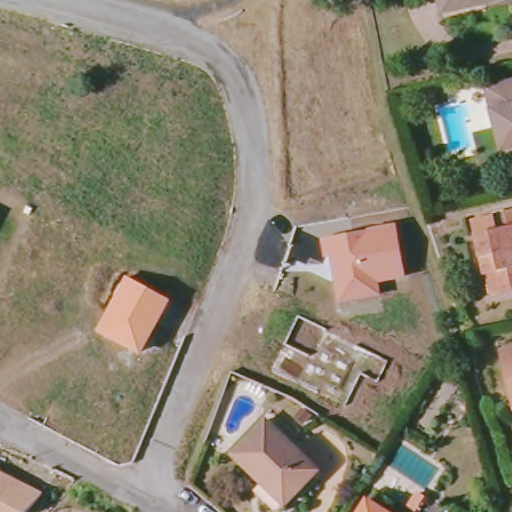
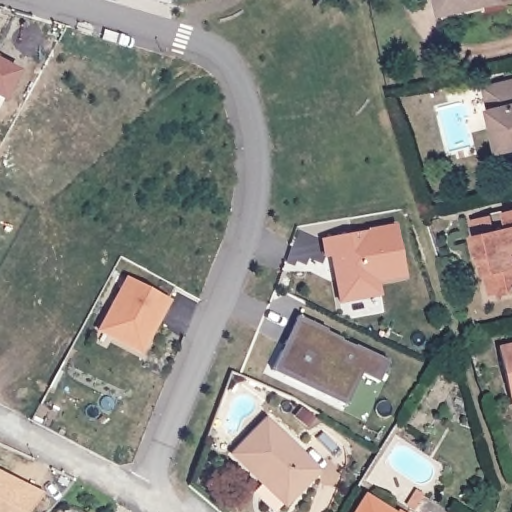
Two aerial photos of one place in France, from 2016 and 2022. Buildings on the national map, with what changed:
unchanged [(440,13),(436,0),(495,0),(440,13)]
new [(0,100),(0,60),(19,71),(2,101),(0,100)]
unchanged [(512,79),(512,147),(500,149),(484,86),(512,79)]
unchanged [(481,273),(479,274),(466,218),(486,214),(497,211),(512,208),(512,250),(512,288),(496,292),(486,294),(481,273)]
unchanged [(331,256),(323,257),(321,238),(397,224),(406,276),(379,282),(382,297),(339,304),(331,256)]
unchanged [(126,275),(170,300),(140,355),(95,331),(126,275)]
unchanged [(389,360),(377,383),(361,375),(346,409),(270,372),(297,316),(389,360)]
unchanged [(511,404),(497,350),(512,347),(512,409),(511,404)]
unchanged [(261,482),(232,454),(266,419),(318,470),(289,500),(285,505),(261,482)]
unchanged [(27,512),(0,512),(0,474),(42,495),(27,512)]

